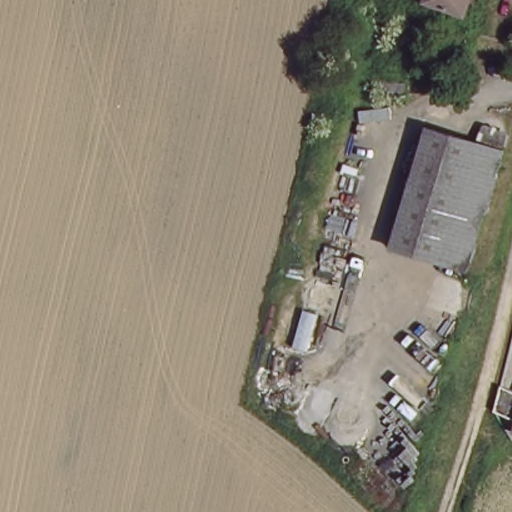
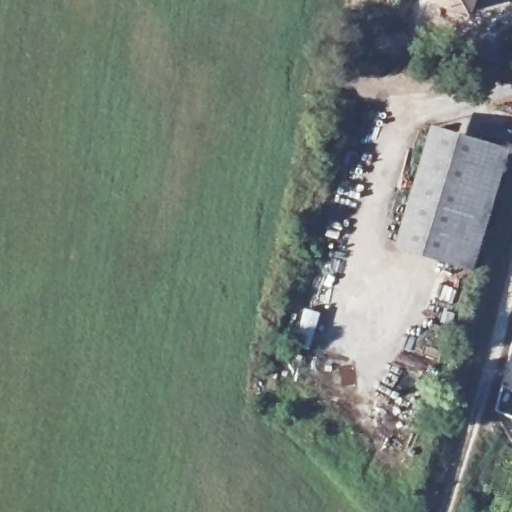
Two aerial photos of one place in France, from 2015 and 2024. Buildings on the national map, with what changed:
unchanged [(427,0),(468,0),(461,20),(425,5),(427,0)]
unchanged [(373,112),(377,97),(402,103),(398,119),(373,112)]
unchanged [(437,270),(388,254),(426,130),(475,145),(437,270)]
unchanged [(503,154),(468,277),(437,270),(475,145),(503,154)]

